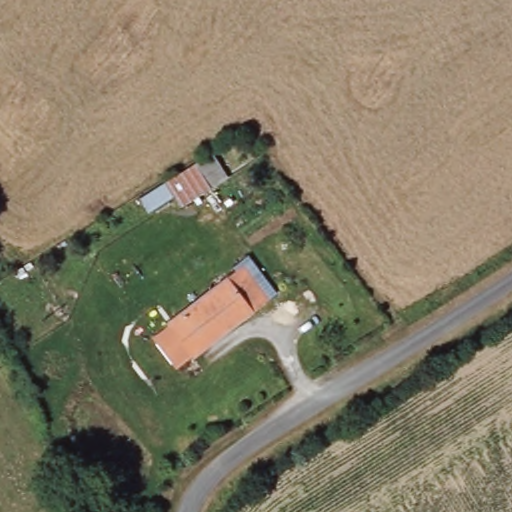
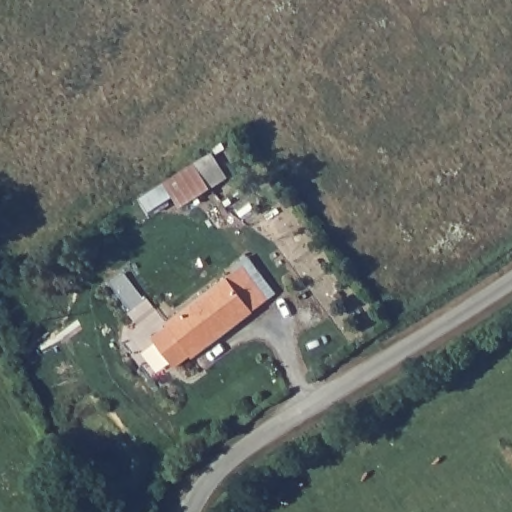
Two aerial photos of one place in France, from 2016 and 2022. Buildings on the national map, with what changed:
unchanged [(180,206),(173,194),(147,211),(139,198),(195,163),(210,188),(180,206)]
unchanged [(192,356),(166,322),(243,265),(268,299),(192,356)]

